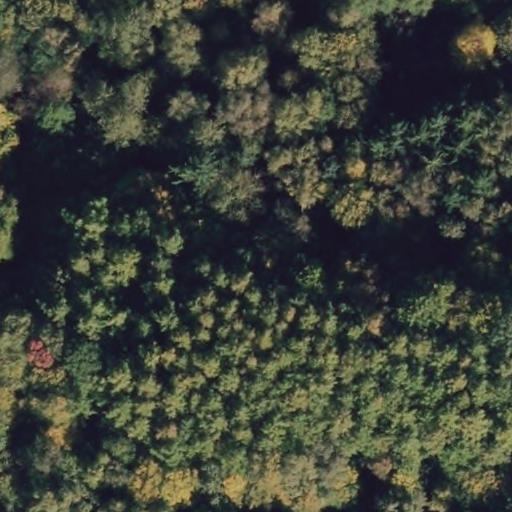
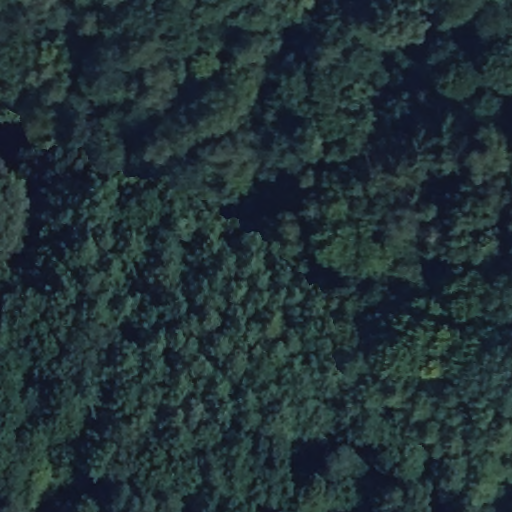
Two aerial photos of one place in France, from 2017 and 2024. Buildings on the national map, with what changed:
unchanged [(385,512),(382,504),(399,497),(404,512),(385,512)]

